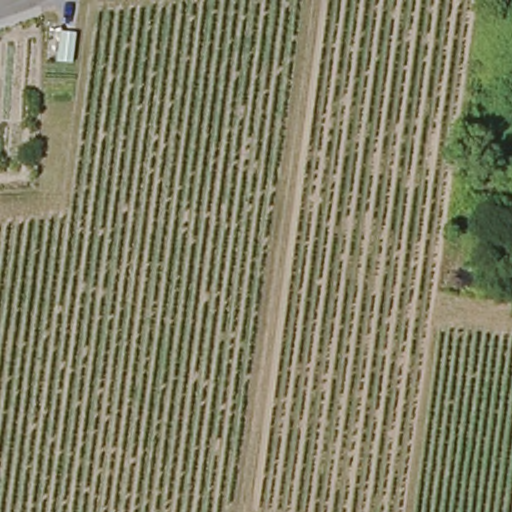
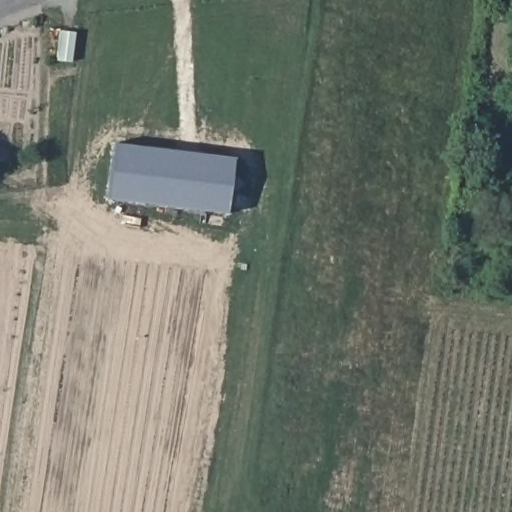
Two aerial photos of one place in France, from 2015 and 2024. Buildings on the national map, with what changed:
unchanged [(71,63),(46,61),(50,27),(76,30),(71,63)]
new [(105,200),(113,142),(233,157),(227,215),(105,200)]

